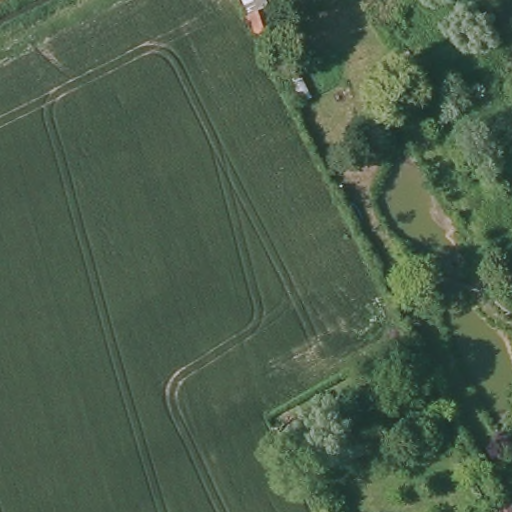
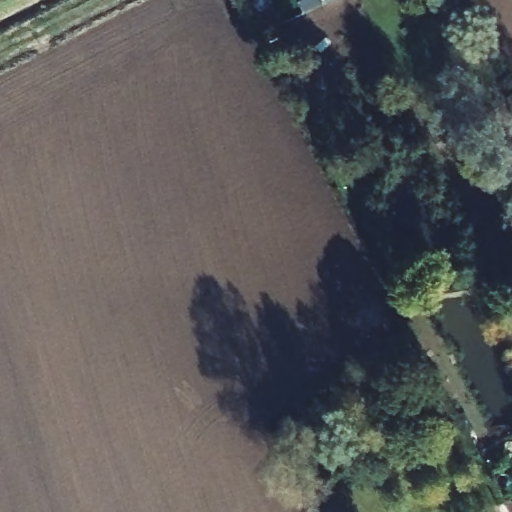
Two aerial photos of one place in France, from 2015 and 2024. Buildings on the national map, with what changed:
unchanged [(244,0),(258,0),(267,18),(272,16),(280,31),(262,40),(244,0)]
unchanged [(498,502),(504,512),(499,512),(494,504),(498,502)]

